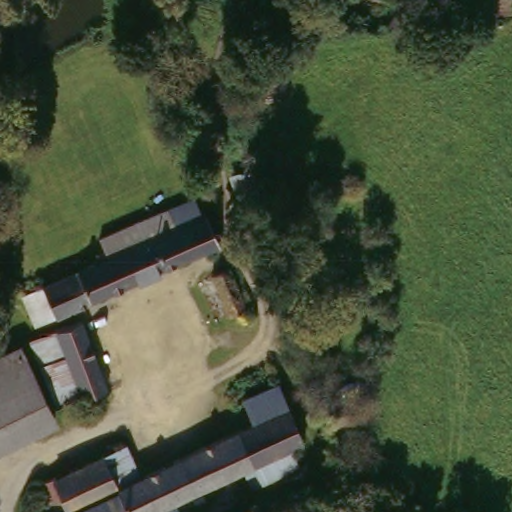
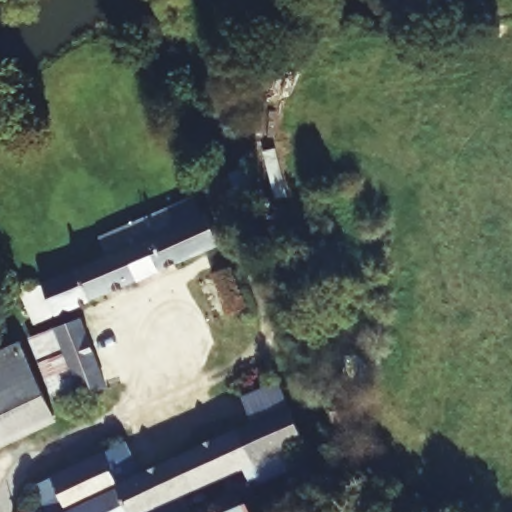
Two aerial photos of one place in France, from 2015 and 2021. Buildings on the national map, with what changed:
unchanged [(28,290),(49,282),(47,277),(113,250),(107,234),(106,232),(171,203),(198,192),(206,210),(212,208),(226,238),(61,310),(41,319),(28,290)]
unchanged [(230,266),(248,307),(232,314),(214,273),(230,266)]
unchanged [(60,323),(85,314),(113,385),(89,392),(60,323)]
unchanged [(64,398),(37,332),(60,323),(89,392),(64,398)]
unchanged [(0,350),(1,350),(24,338),(41,373),(0,393),(0,350)]
unchanged [(60,413),(0,443),(0,393),(41,373),(60,413)]
unchanged [(263,420),(252,396),(280,383),(292,406),(307,438),(294,444),(248,465),(149,512),(132,512),(122,488),(149,475),(263,420)]
unchanged [(361,390),(365,418),(337,421),(333,393),(358,390),(361,390)]
unchanged [(133,443),(149,475),(122,488),(74,512),(59,512),(46,485),(133,443)]
unchanged [(303,464),(257,486),(248,465),(294,444),(303,464)]
unchanged [(132,512),(74,512),(122,488),(132,512)]
unchanged [(246,512),(226,512),(242,505),(246,512)]

